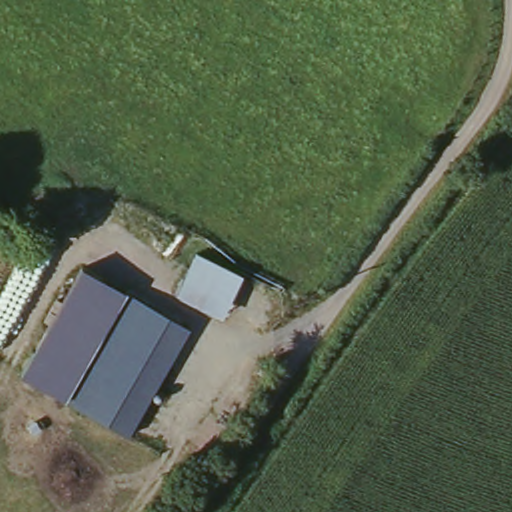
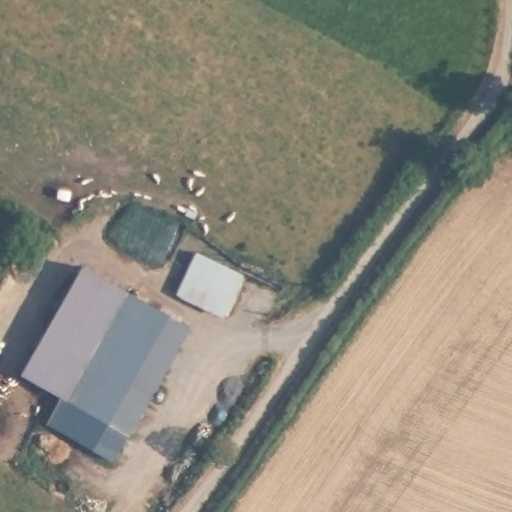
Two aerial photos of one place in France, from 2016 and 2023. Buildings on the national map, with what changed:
unchanged [(204,252),(247,271),(231,314),(187,295),(204,252)]
unchanged [(136,422),(114,459),(48,424),(65,393),(29,374),(85,264),(194,323),(136,422)]

